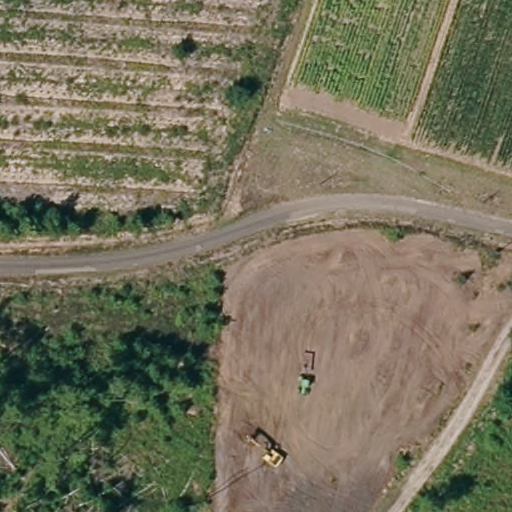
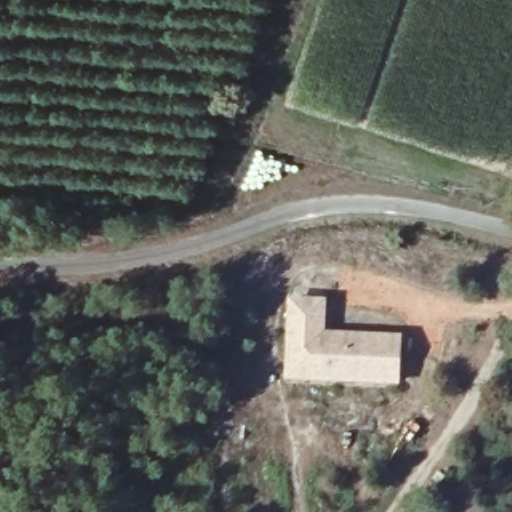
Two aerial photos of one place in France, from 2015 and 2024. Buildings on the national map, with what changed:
new [(288,307),(320,308),(319,336),(303,335),(301,384),(285,384),(288,307)]
new [(319,336),(319,341),(330,341),(396,343),(395,388),(301,384),(303,335),(319,336)]

